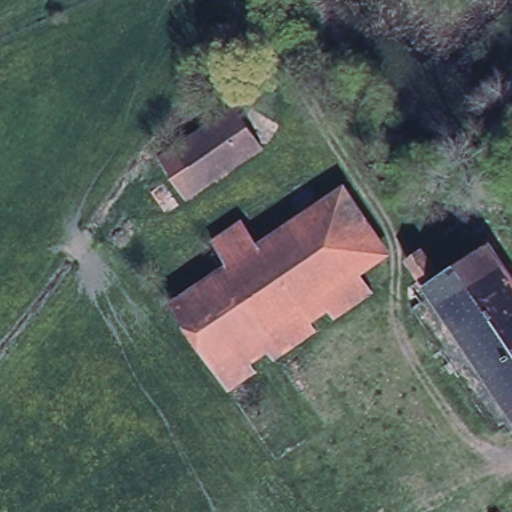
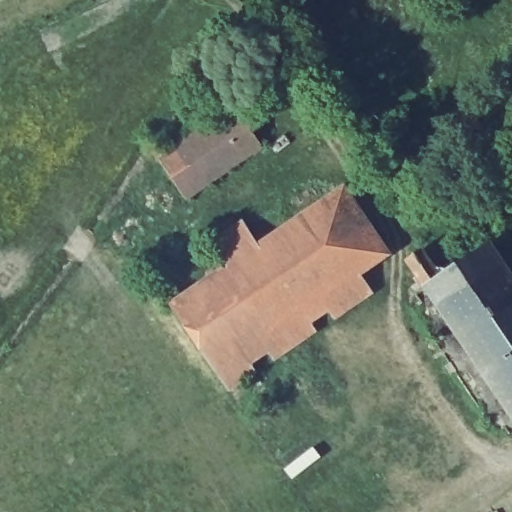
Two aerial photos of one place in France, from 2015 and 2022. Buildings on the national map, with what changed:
unchanged [(262,148),(185,201),(157,159),(235,107),(262,148)]
unchanged [(257,244),(340,184),(382,250),(358,267),(213,369),(170,305),(226,266),(257,244)]
unchanged [(209,241),(240,219),(257,244),(226,266),(209,241)]
unchanged [(417,249),(420,248),(438,275),(485,244),(512,284),(512,425),(426,294),(403,258),(417,249)]
unchanged [(370,285),(332,313),(325,303),(307,316),(313,326),(273,354),(267,345),(247,358),(253,368),(225,387),(213,369),(358,267),(370,285)]

